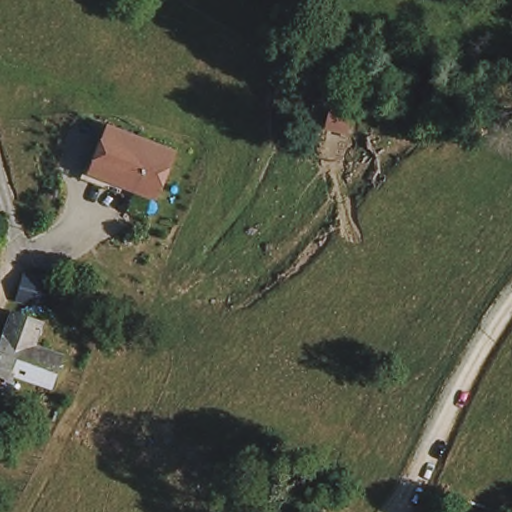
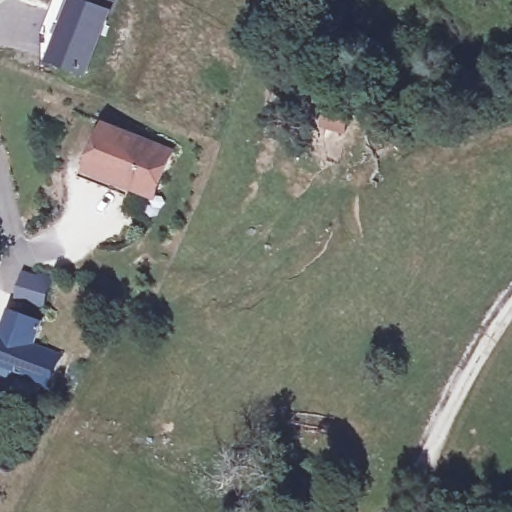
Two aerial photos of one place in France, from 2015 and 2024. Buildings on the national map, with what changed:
new [(49,64),(73,0),(86,0),(87,0),(88,0),(119,0),(115,12),(89,79),(49,64)]
unchanged [(88,177),(91,169),(108,127),(169,152),(152,194),(135,187),(131,195),(88,177)]
unchanged [(25,271),(48,278),(41,301),(17,294),(25,271)]
unchanged [(41,331),(33,353),(65,364),(52,395),(0,374),(0,355),(12,321),(41,331)]

